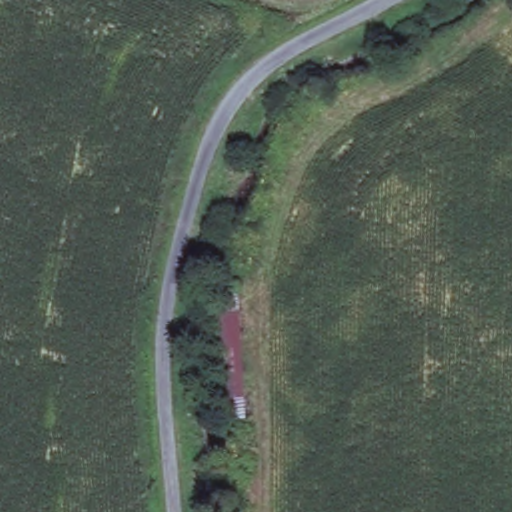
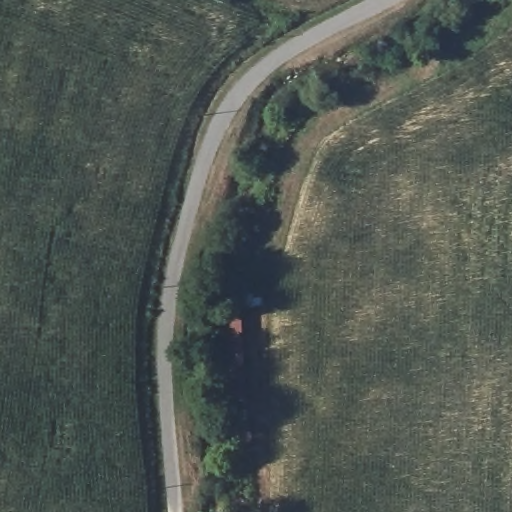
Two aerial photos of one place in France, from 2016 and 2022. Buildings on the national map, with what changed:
unchanged [(247,288),(253,426),(237,427),(238,405),(224,405),(219,311),(226,312),(231,287),(247,288)]

